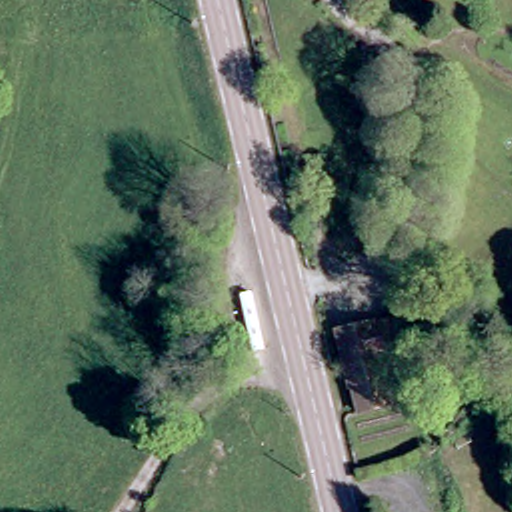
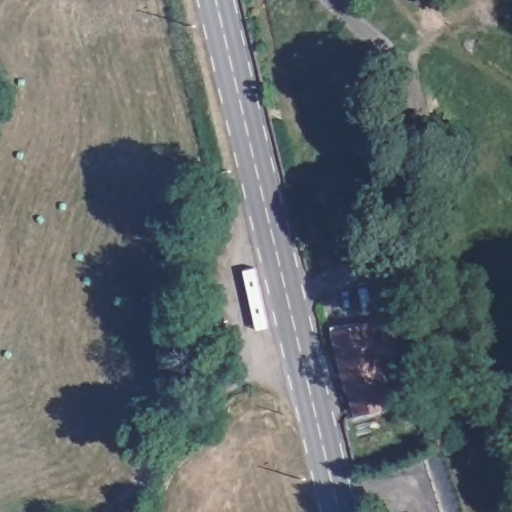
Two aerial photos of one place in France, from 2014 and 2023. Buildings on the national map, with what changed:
unchanged [(336,334),(373,324),(373,327),(395,322),(402,351),(382,357),(393,407),(360,416),(353,391),(350,391),(336,334)]

